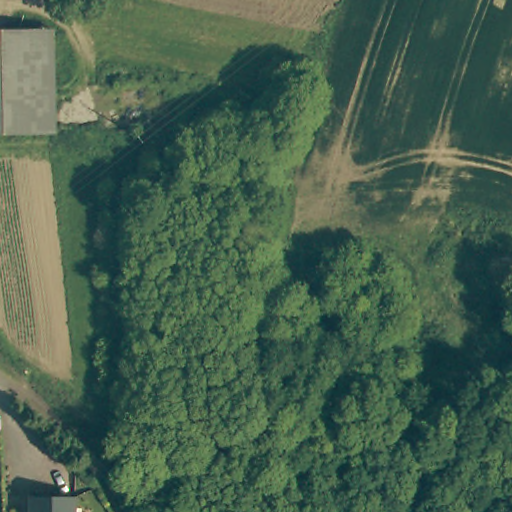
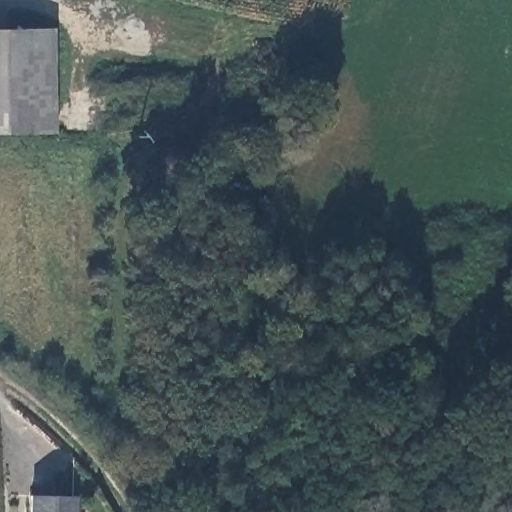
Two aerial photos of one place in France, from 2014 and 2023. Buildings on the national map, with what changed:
unchanged [(0,132),(0,32),(55,31),(56,132),(0,132)]
unchanged [(31,512),(31,493),(77,494),(77,512),(31,512)]

